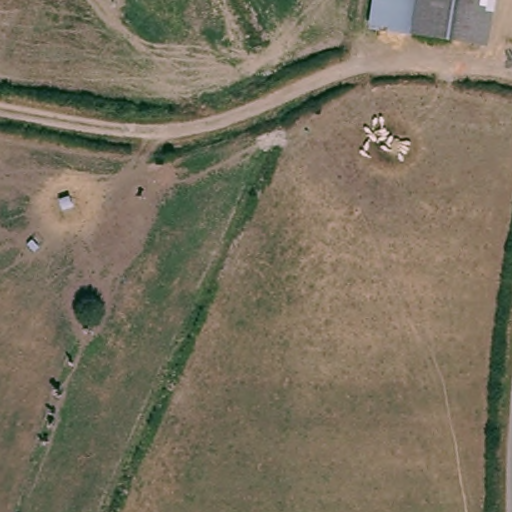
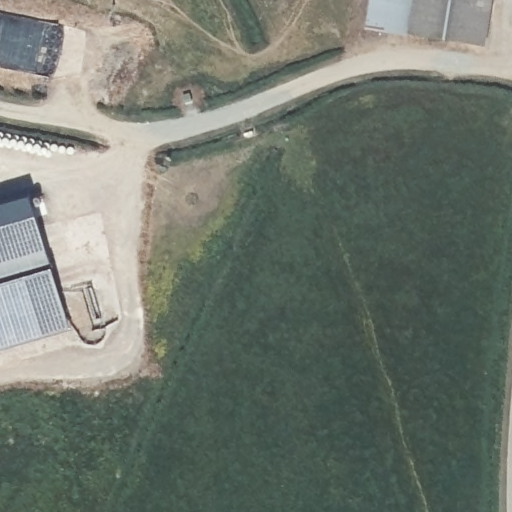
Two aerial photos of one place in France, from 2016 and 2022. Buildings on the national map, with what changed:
unchanged [(370,21),(374,0),(420,0),(414,30),(370,21)]
unchanged [(425,33),(414,30),(420,0),(460,0),(453,38),(425,33)]
unchanged [(462,40),(458,39),(453,38),(460,0),(494,0),(487,45),(462,40)]
new [(0,201),(29,192),(69,327),(0,348),(0,201)]

